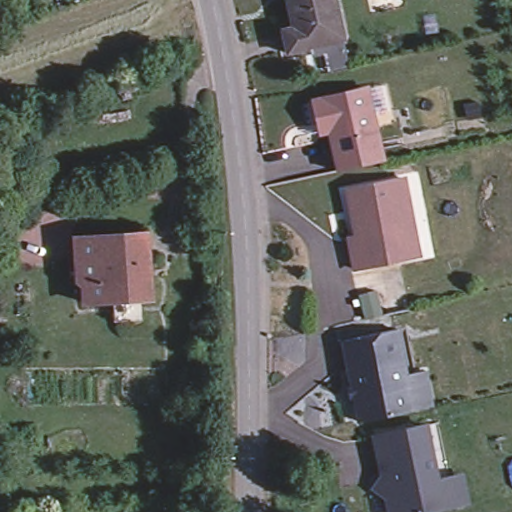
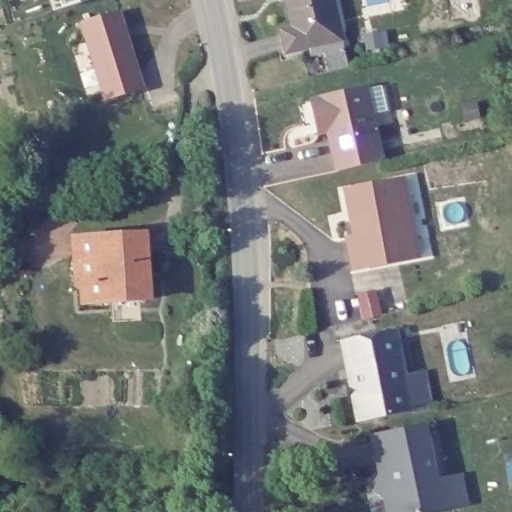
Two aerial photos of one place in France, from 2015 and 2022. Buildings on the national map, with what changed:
new [(62,9),(60,0),(91,0),(81,3),(62,9)]
unchanged [(307,42),(280,47),(276,23),(287,21),(282,0),(328,0),(335,36),(340,61),(312,67),(307,42)]
new [(146,89),(105,102),(80,22),(122,10),(146,89)]
unchanged [(384,160),(340,170),(330,129),(322,131),(320,123),(315,101),(369,89),(384,160)]
unchanged [(395,261),(350,269),(345,236),(352,234),(344,190),(400,179),(412,242),(414,257),(395,261)]
unchanged [(113,318),(112,298),(85,300),(83,287),(77,279),(73,236),(143,231),(147,296),(138,297),(140,316),(113,318)]
unchanged [(372,317),(368,318),(362,294),(378,290),(385,314),(372,317)]
unchanged [(400,327),(408,372),(427,369),(433,403),(357,419),(342,339),(400,327)]
unchanged [(428,421),(440,475),(463,471),(470,500),(416,512),(388,512),(385,497),(371,487),(380,473),(371,432),(428,421)]

